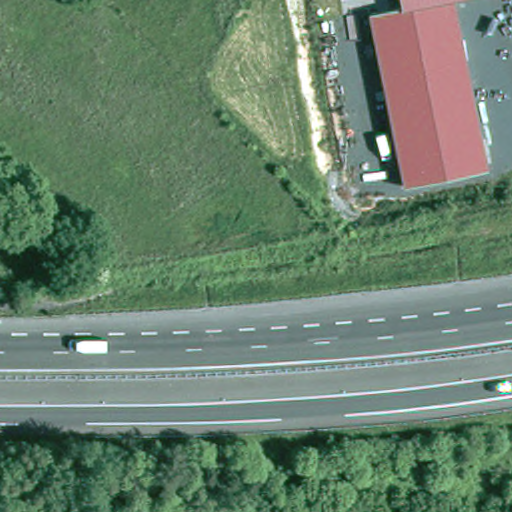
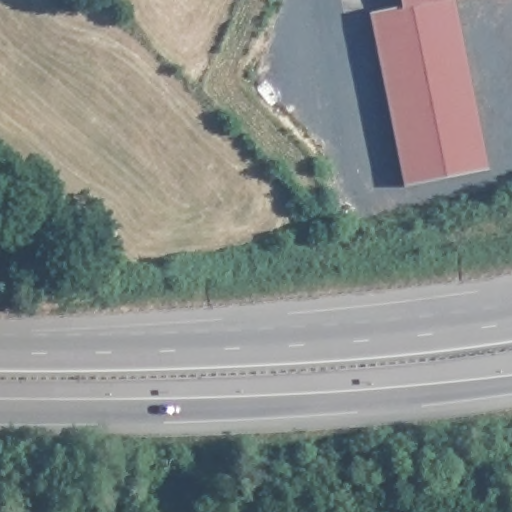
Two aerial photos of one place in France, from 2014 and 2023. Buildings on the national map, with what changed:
unchanged [(401,5),(399,0),(457,0),(493,168),(404,187),(370,10),(401,5)]

